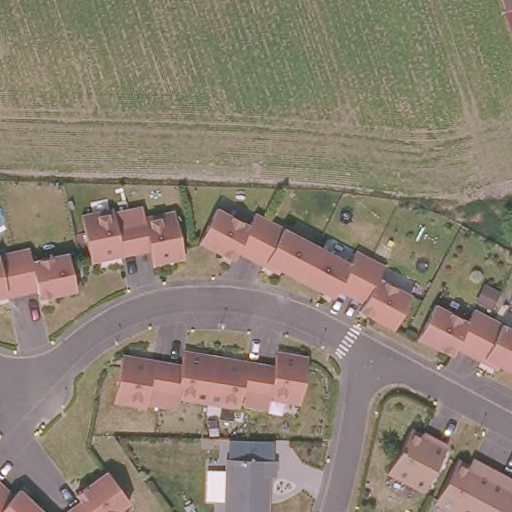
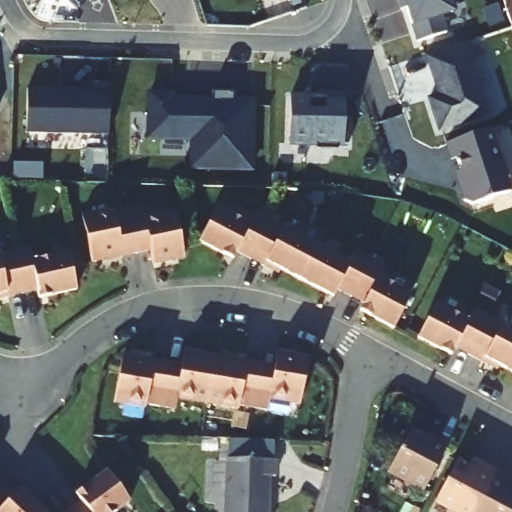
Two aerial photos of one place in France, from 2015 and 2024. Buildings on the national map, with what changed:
new [(452,11),(440,15),(446,30),(420,40),(407,0),(448,0),(452,11)]
new [(507,11),(504,0),(512,0),(512,10),(507,11)]
unchanged [(512,10),(512,24),(507,11),(512,10)]
new [(487,112),(442,126),(432,99),(444,96),(430,53),(465,42),(487,112)]
new [(30,89),(93,90),(93,84),(110,84),(107,136),(30,132),(30,89)]
new [(253,172),(187,170),(190,144),(145,141),(148,93),(175,94),(175,99),(255,102),(253,172)]
new [(317,98),(317,94),(345,95),(345,122),(348,122),(348,144),(338,144),(338,150),(317,150),(317,144),(290,144),(290,98),(317,98)]
new [(490,130),(510,194),(466,207),(460,185),(465,183),(457,159),(450,160),(445,142),(490,130)]
unchanged [(142,206),(145,219),(175,212),(182,245),(183,255),(152,262),(150,250),(137,252),(122,255),(121,254),(91,260),(82,216),(113,210),(113,211),(142,206)]
unchanged [(249,258),(236,251),(232,260),(198,241),(216,208),(248,225),(255,214),(269,221),(249,258)]
unchanged [(263,266),(249,258),(269,221),(316,246),(298,280),(280,270),(277,273),(263,266)]
unchanged [(349,263),(355,251),(370,258),(363,270),(350,296),(336,289),(332,297),(298,280),(316,246),(349,263)]
unchanged [(6,297),(5,290),(0,292),(0,254),(13,251),(28,247),(31,260),(67,252),(70,265),(75,290),(38,298),(37,290),(22,293),(18,294),(6,297)]
unchanged [(394,325),(392,329),(358,311),(363,303),(350,296),(363,270),(370,258),(383,266),(377,278),(410,295),(394,325)]
unchanged [(468,355),(455,347),(451,355),(417,337),(435,304),(467,321),(474,310),(488,317),(468,355)]
unchanged [(482,362),(468,355),(488,317),(512,330),(512,373),(498,365),(497,369),(482,362)]
unchanged [(238,405),(238,406),(177,396),(175,409),(145,404),(145,405),(114,400),(119,372),(122,357),(152,362),(152,360),(167,362),(181,365),(183,352),(214,358),(245,363),(238,405)]
unchanged [(245,361),(260,363),(274,366),(276,354),(307,359),(300,402),(270,397),(267,410),(238,405),(245,363),(245,361)]
unchanged [(424,490),(388,470),(410,430),(432,441),(433,438),(447,445),(424,490)]
unchanged [(269,476),(268,491),(265,491),(265,502),(268,502),(268,512),(225,512),(227,459),(275,460),(275,476),(269,476)]
unchanged [(457,461),(477,471),(481,463),(495,471),(473,512),(458,512),(435,500),(457,461)]
unchanged [(80,501),(75,493),(106,471),(128,501),(114,512),(65,512),(67,510),(80,501)]
unchanged [(505,486),(512,490),(512,512),(473,512),(495,471),(509,478),(505,486)]
unchanged [(20,489),(44,512),(0,512),(0,483),(2,485),(13,495),(20,489)]

